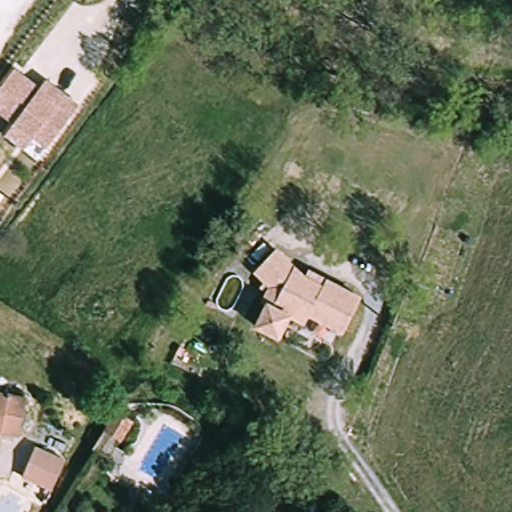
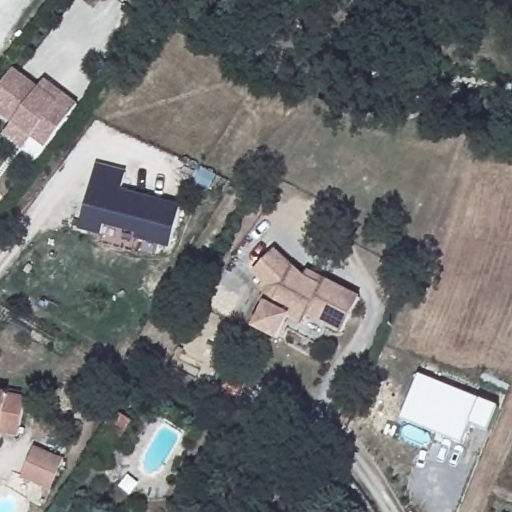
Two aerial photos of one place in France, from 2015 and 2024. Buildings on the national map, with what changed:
unchanged [(46,79),(79,102),(47,146),(34,134),(24,148),(6,136),(15,120),(0,110),(0,89),(14,69),(40,87),(46,79)]
new [(128,177),(122,196),(182,211),(173,250),(136,242),(136,235),(107,227),(103,237),(82,231),(97,168),(128,177)]
unchanged [(263,306),(258,303),(266,288),(251,274),(276,249),(305,276),(322,285),(326,278),(361,297),(341,336),(307,318),(302,327),(289,320),(278,341),(251,328),(263,306)]
new [(404,417),(422,373),(501,406),(492,430),(474,422),(465,442),(442,433),(423,425),(404,417)]
unchanged [(19,437),(0,433),(0,396),(28,402),(19,437)]
unchanged [(136,424),(124,445),(105,433),(111,423),(118,412),(136,424)]
unchanged [(49,492),(20,479),(35,446),(64,459),(49,492)]

